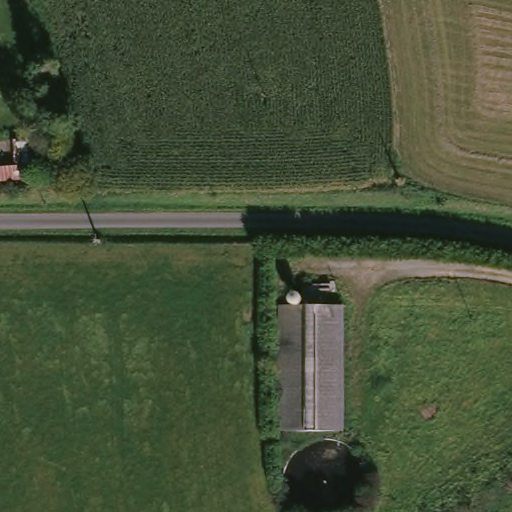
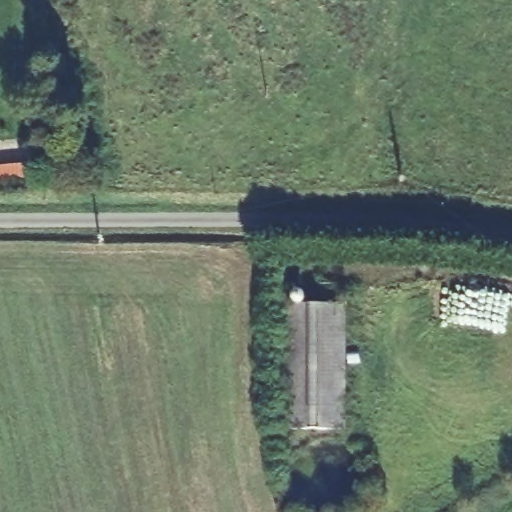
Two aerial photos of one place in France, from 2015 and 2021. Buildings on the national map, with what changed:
unchanged [(286,309),(349,310),(346,429),(282,429),(286,309)]

